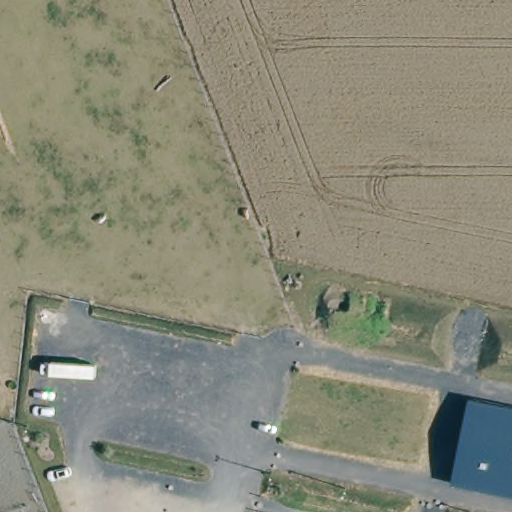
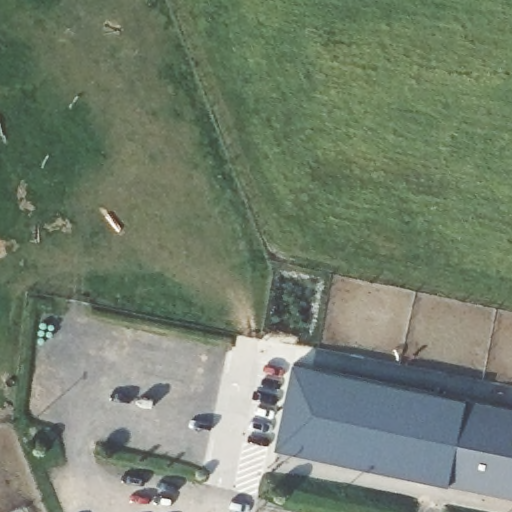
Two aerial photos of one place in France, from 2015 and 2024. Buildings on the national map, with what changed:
new [(277,449),(294,363),(467,401),(449,482),(277,449)]
unchanged [(449,482),(467,401),(512,410),(512,495),(449,482)]

